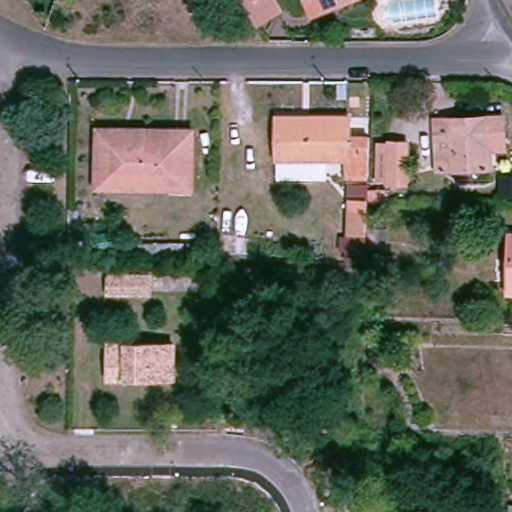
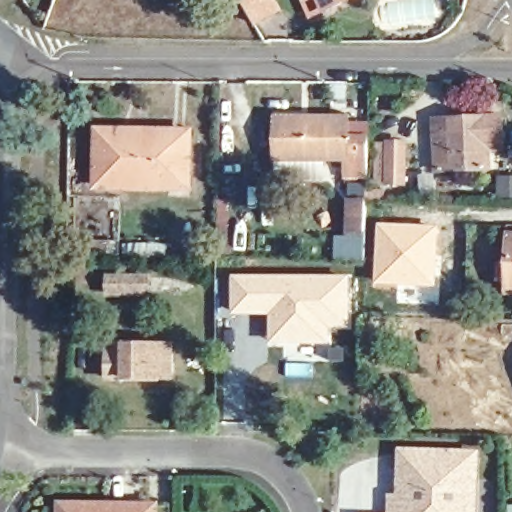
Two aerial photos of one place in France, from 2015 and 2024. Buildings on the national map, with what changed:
unchanged [(251,26),(234,0),(266,0),(273,12),(251,26)]
unchanged [(321,16),(313,0),(356,0),(321,16)]
unchanged [(344,112),(344,125),(365,125),(363,175),(345,175),(345,155),(272,155),(272,112),(344,112)]
unchanged [(508,117),(509,138),(493,139),(495,150),(495,169),(442,171),(440,120),(508,117)]
unchanged [(167,136),(167,126),(197,126),(196,184),(102,183),(102,135),(167,136)]
unchanged [(375,141),(385,141),(385,139),(402,139),(401,179),(383,178),(373,177),(375,141)]
new [(497,175),(512,176),(512,198),(496,197),(497,175)]
new [(368,182),(368,191),(385,192),(385,205),(368,204),(367,225),(387,226),(387,244),(367,242),(366,258),(345,259),(346,250),(337,247),(338,235),(347,234),(348,182),(368,182)]
demolished [(362,196),(362,199),(362,225),(342,224),(342,194),(362,195),(362,196)]
new [(439,226),(437,287),(376,286),(377,243),(387,244),(387,226),(439,226)]
unchanged [(508,292),(510,235),(512,236),(512,293),(508,292)]
new [(350,274),(351,330),(332,330),(331,346),(267,343),(267,316),(230,315),(230,274),(350,274)]
unchanged [(111,281),(151,282),(151,298),(110,297),(111,281)]
unchanged [(177,371),(119,370),(119,338),(184,340),(183,355),(177,355),(177,371)]
new [(346,346),(346,362),(329,361),(331,346),(346,346)]
new [(388,496),(400,495),(400,452),(468,451),(469,512),(389,512),(388,496)]
new [(62,506),(116,506),(116,512),(62,512),(62,506)]
new [(127,506),(158,506),(158,512),(127,512),(127,506)]

